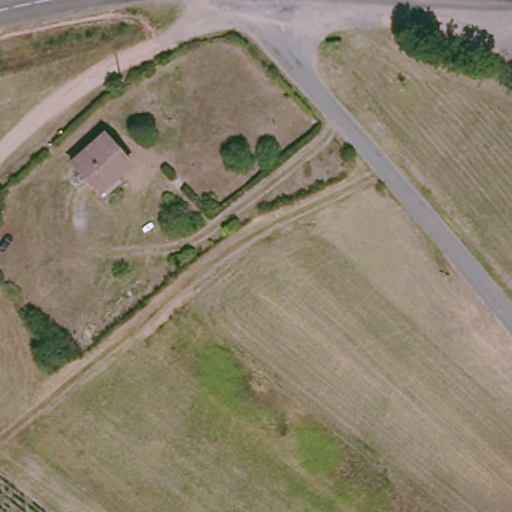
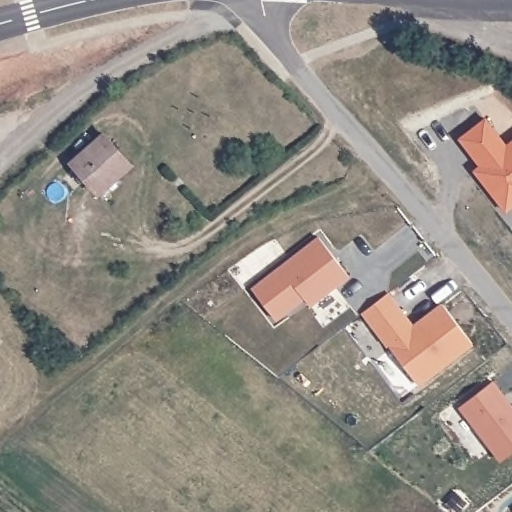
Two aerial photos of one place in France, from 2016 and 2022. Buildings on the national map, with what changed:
new [(507,211),(474,173),(479,168),(460,138),(487,119),(507,144),(512,141),(512,207),(507,211)]
unchanged [(104,134),(129,162),(99,189),(74,161),(104,134)]
new [(253,289),(319,236),(349,276),(311,306),(305,299),(278,320),(253,289)]
new [(389,293),(414,324),(442,303),(474,344),(421,385),(363,314),(389,293)]
new [(494,381),(512,404),(512,453),(502,461),(461,408),(494,381)]

